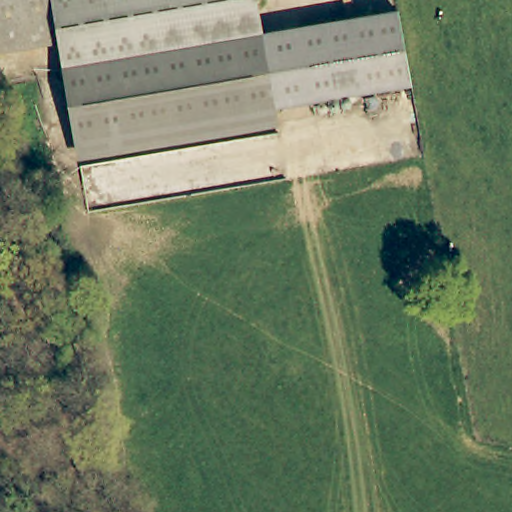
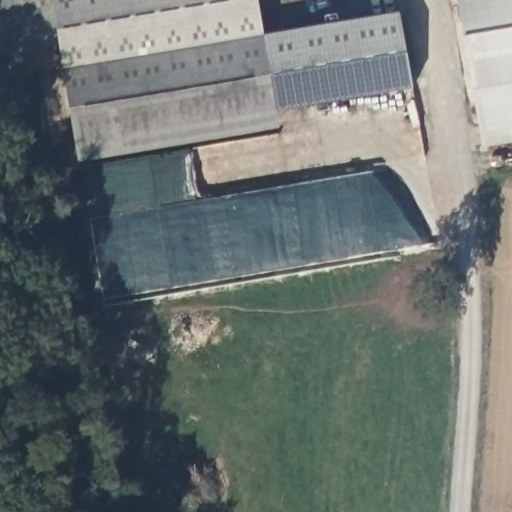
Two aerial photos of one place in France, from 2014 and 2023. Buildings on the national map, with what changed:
unchanged [(35,9),(0,16),(0,0),(33,0),(35,9)]
unchanged [(33,0),(84,0),(90,35),(62,40),(42,43),(35,9),(33,0)]
unchanged [(66,66),(62,40),(90,35),(84,0),(259,0),(265,34),(66,66)]
new [(456,0),(512,0),(512,143),(482,148),(456,0)]
unchanged [(42,43),(0,49),(0,16),(35,9),(42,43)]
unchanged [(278,109),(265,34),(406,11),(419,87),(278,109)]
unchanged [(278,109),(281,129),(82,164),(66,66),(265,34),(278,109)]

